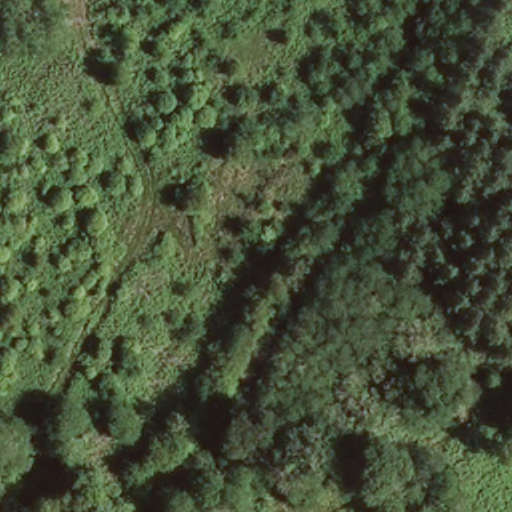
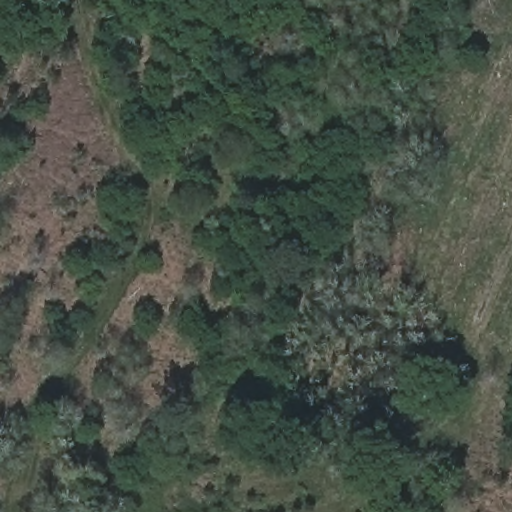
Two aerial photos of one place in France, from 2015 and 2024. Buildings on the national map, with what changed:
unchanged [(0,413),(6,415),(1,440),(0,440),(0,413)]

